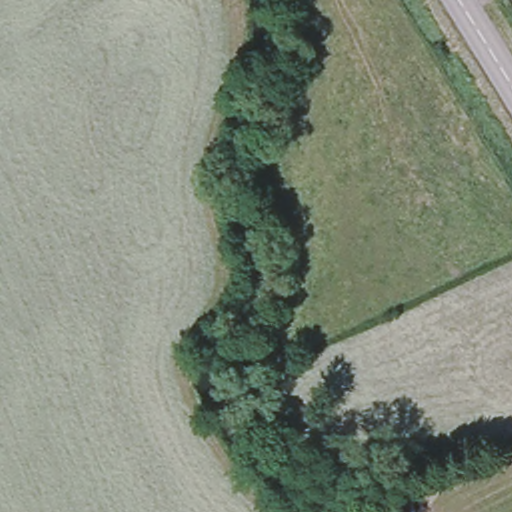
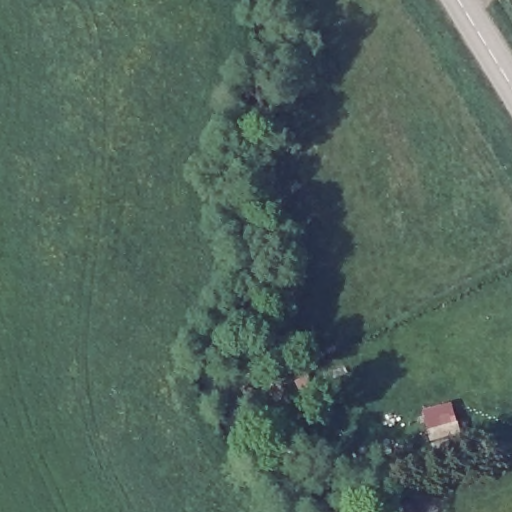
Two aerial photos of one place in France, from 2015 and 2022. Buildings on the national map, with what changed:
new [(454,403),(462,437),(431,444),(423,413),(454,403)]
unchanged [(381,496),(384,512),(349,512),(347,502),(381,496)]

